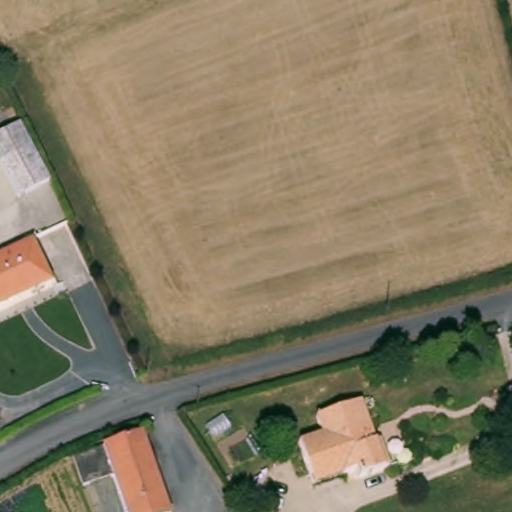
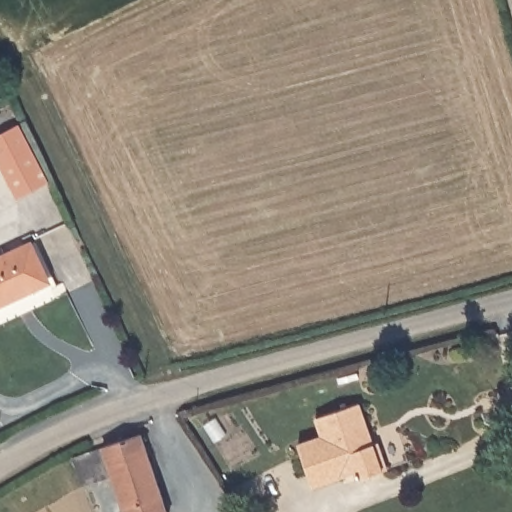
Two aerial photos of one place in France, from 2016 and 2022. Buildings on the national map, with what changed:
unchanged [(25,197),(0,154),(0,136),(21,123),(53,180),(25,197)]
unchanged [(54,275),(18,294),(21,299),(0,310),(0,260),(36,240),(54,275)]
unchanged [(378,434),(386,431),(398,462),(365,475),(361,467),(320,483),(303,441),(325,432),(316,410),(363,394),(378,434)]
unchanged [(86,482),(77,452),(145,429),(173,512),(130,512),(117,472),(86,482)]
unchanged [(236,499),(245,512),(215,512),(213,508),(236,499)]

